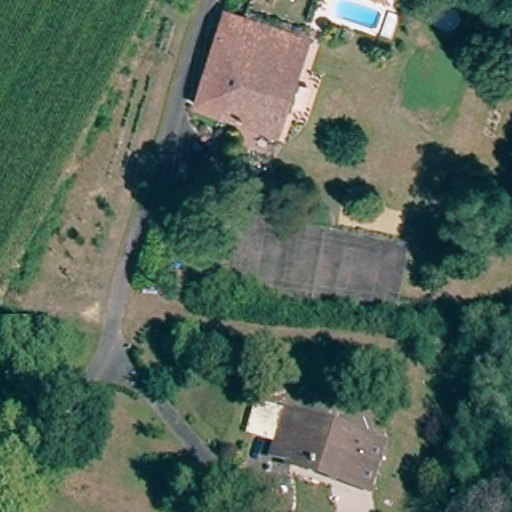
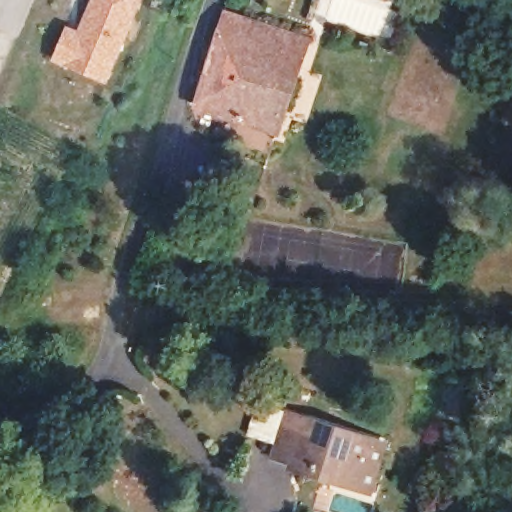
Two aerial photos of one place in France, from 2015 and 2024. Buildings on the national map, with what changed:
new [(54,61),(68,25),(79,30),(92,0),(144,0),(107,82),(54,61)]
unchanged [(224,115),(205,107),(198,105),(224,35),(232,15),(237,17),(250,21),(313,39),(306,61),(280,135),(224,115)]
unchanged [(367,486),(351,481),(297,465),(297,469),(287,465),(290,451),(278,445),(292,410),(304,414),(367,434),(381,438),(367,486)]

